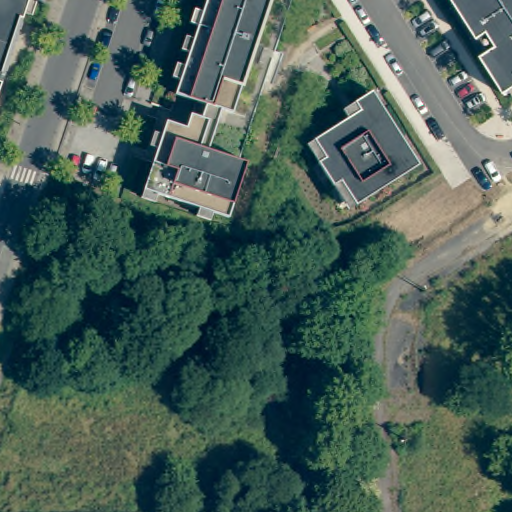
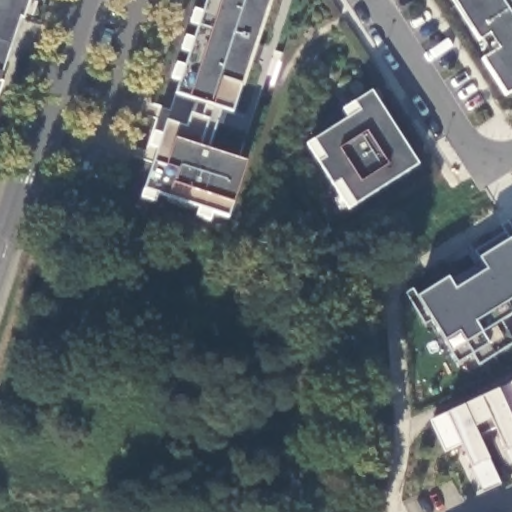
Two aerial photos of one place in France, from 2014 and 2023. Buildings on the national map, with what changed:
unchanged [(30,0),(23,22),(14,48),(0,91),(0,0),(30,0)]
unchanged [(186,129),(194,102),(174,96),(206,0),(270,0),(232,115),(221,111),(216,124),(207,151),(246,164),(228,219),(143,191),(166,122),(186,129)]
unchanged [(481,61),(493,53),(485,41),(479,44),(451,0),(512,0),(512,93),(505,97),(481,61)]
unchanged [(418,166),(355,207),(339,182),(332,187),(317,164),(324,159),(313,141),(359,112),(353,104),(371,92),(418,166)]
new [(512,341),(512,346),(477,367),(471,355),(456,363),(445,345),(416,298),(447,278),(454,290),(485,271),(478,258),(510,241),(500,227),(507,222),(512,230),(512,315),(499,323),(512,341)]
new [(495,429),(479,437),(490,461),(501,484),(481,492),(470,468),(460,447),(443,455),(429,422),(446,413),(512,383),(512,467),(505,452),(495,429)]

